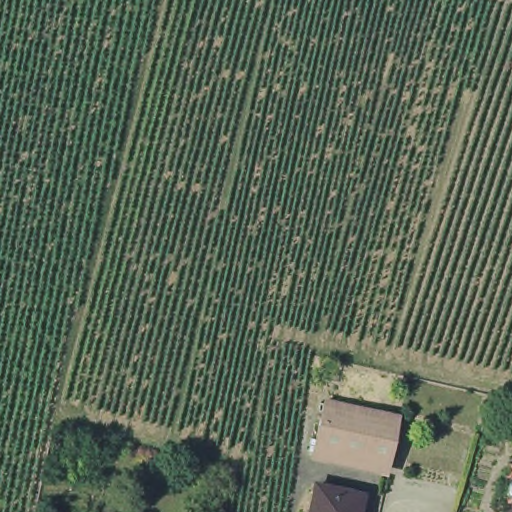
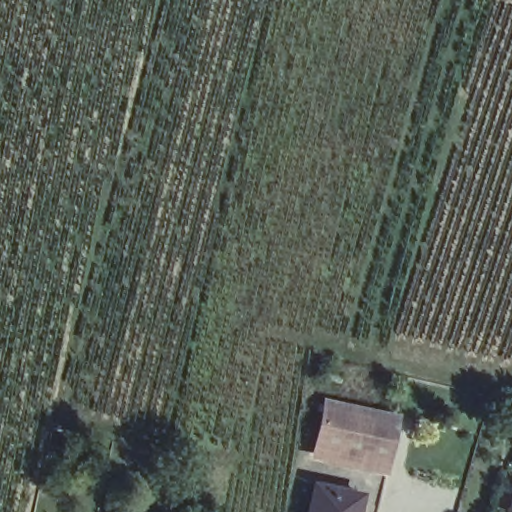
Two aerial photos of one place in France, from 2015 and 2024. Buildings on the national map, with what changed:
unchanged [(340,398),(373,405),(401,412),(391,462),(362,456),(330,450),(316,446),(327,395),(340,398)]
unchanged [(305,512),(313,476),(319,477),(350,484),(358,485),(356,496),(362,497),(359,512),(305,512)]
unchanged [(506,512),(502,510),(512,477),(512,512),(506,512)]

